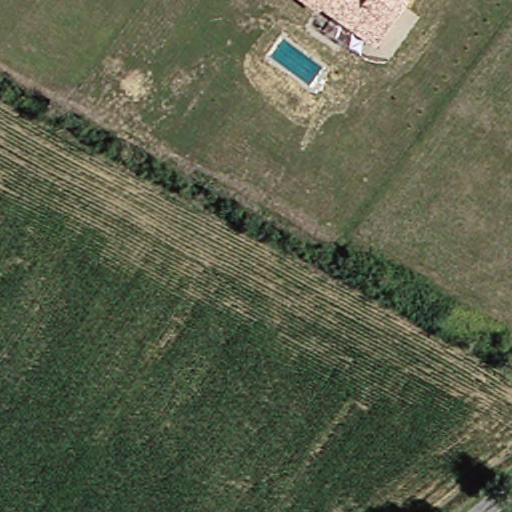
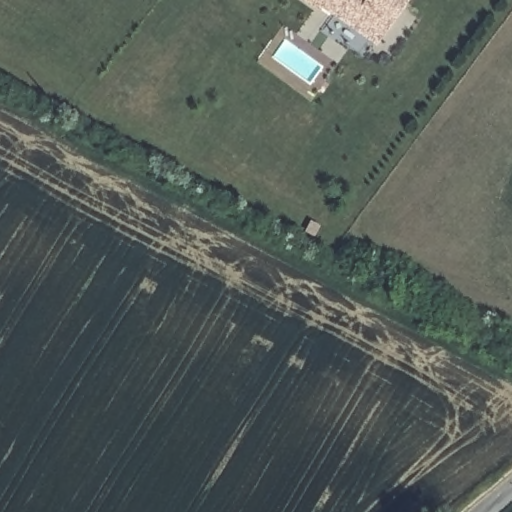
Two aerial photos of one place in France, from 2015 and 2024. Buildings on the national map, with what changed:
unchanged [(317,7),(308,0),(403,0),(374,41),(321,3),(317,7)]

